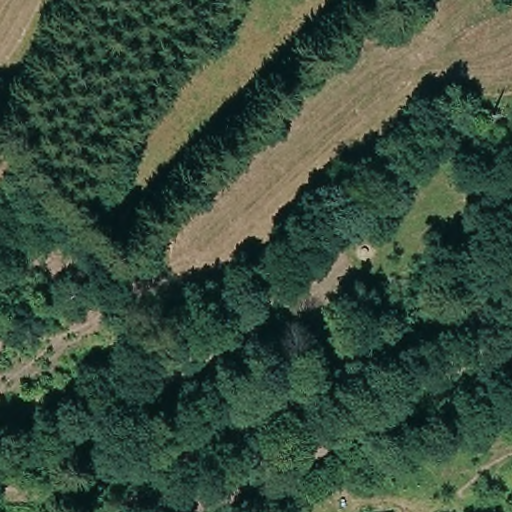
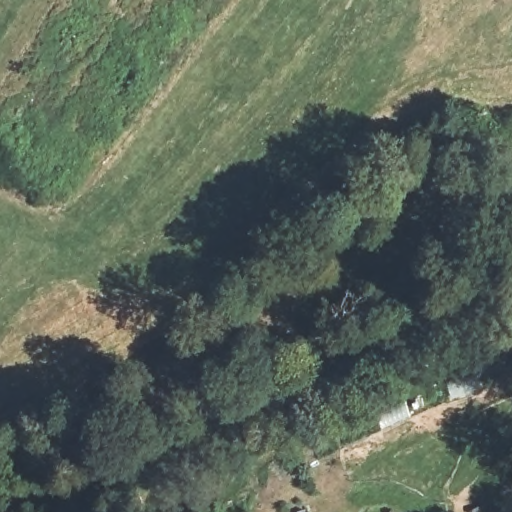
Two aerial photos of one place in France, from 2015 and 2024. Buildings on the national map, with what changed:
[]

